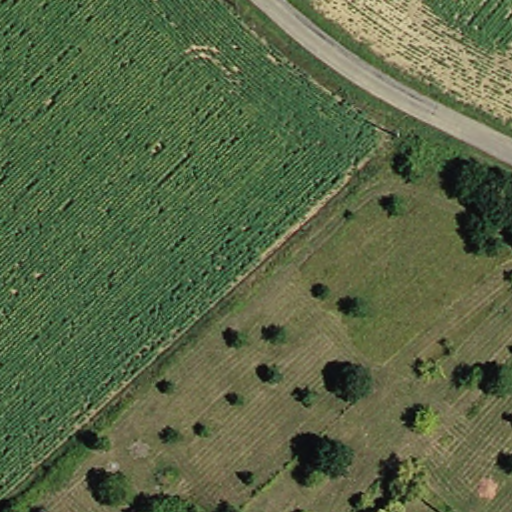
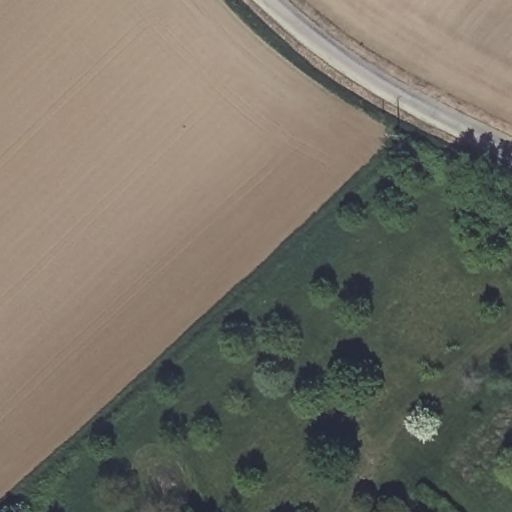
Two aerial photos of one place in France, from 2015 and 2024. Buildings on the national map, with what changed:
[]

